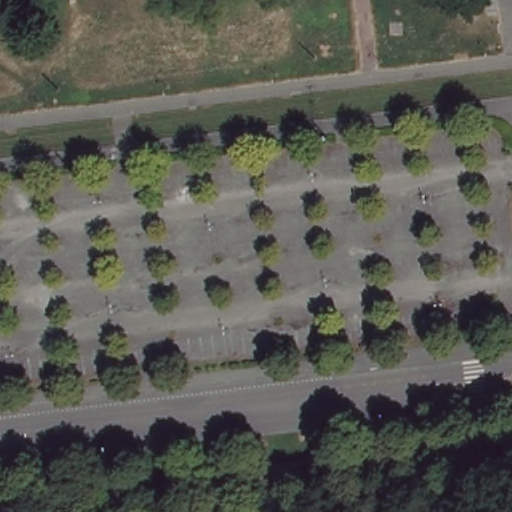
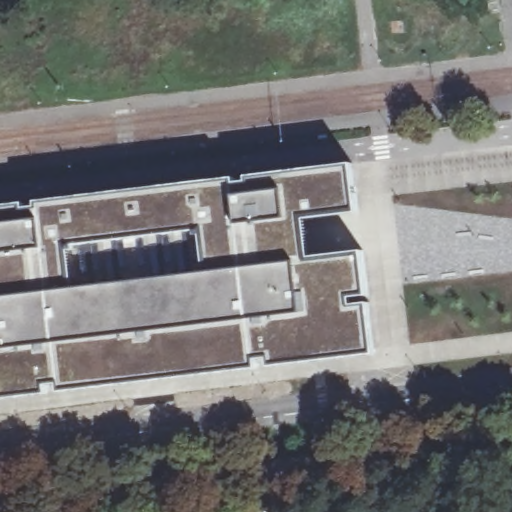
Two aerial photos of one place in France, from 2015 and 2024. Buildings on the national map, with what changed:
new [(376,356),(0,400),(0,206),(353,165),(359,212),(304,218),(308,260),(364,253),(376,356)]

